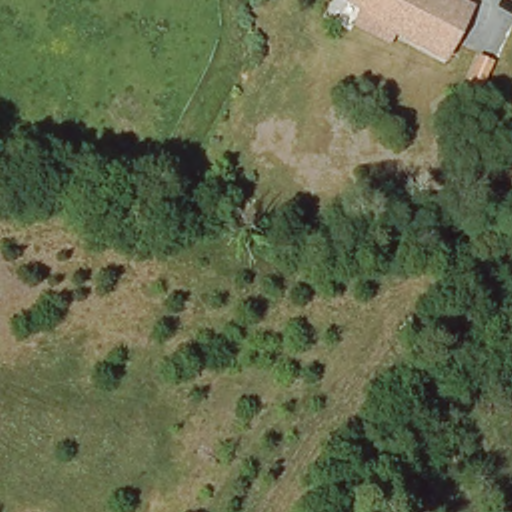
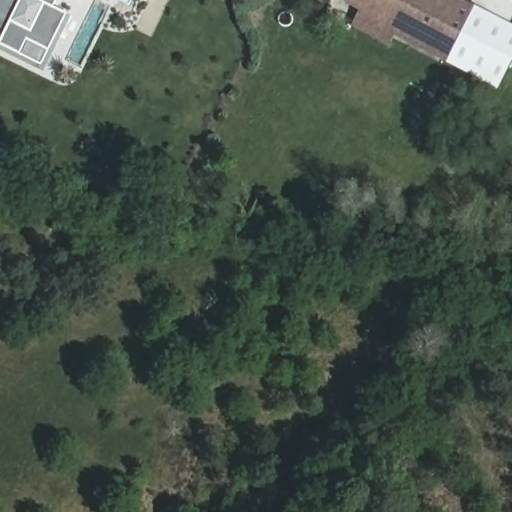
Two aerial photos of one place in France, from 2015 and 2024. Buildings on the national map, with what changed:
new [(40,71),(0,50),(0,0),(56,0),(52,7),(66,13),(40,71)]
unchanged [(365,13),(367,8),(355,0),(461,0),(475,8),(448,58),(400,31),(394,41),(360,23),(365,13)]
new [(512,26),(512,59),(497,89),(445,64),(448,58),(475,8),(512,26)]

